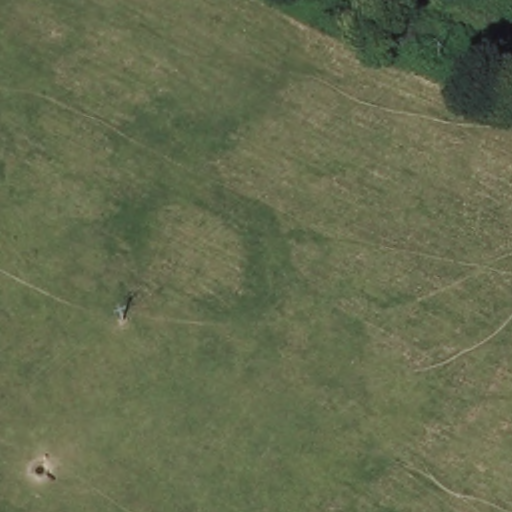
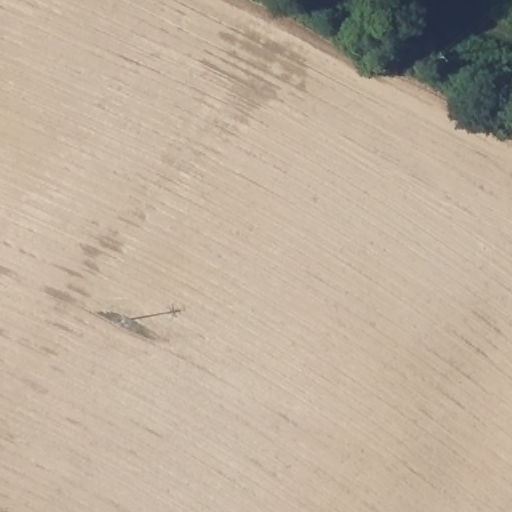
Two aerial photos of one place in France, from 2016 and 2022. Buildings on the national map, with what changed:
[]

